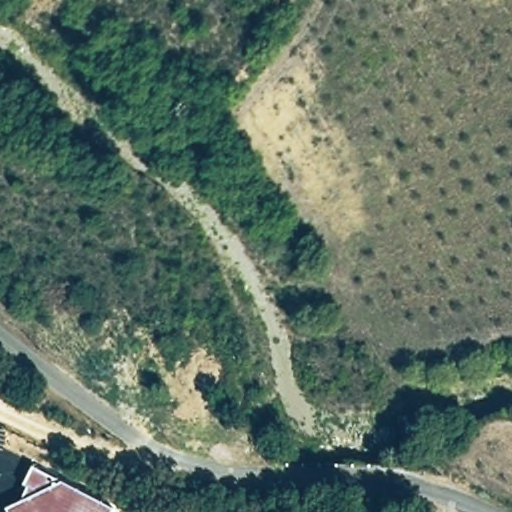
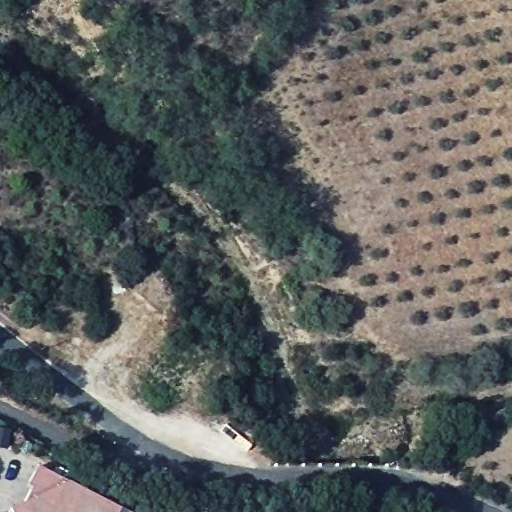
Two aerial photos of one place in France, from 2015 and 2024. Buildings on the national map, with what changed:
unchanged [(22,502),(31,488),(27,486),(37,468),(120,512),(9,512),(7,510),(22,502)]

